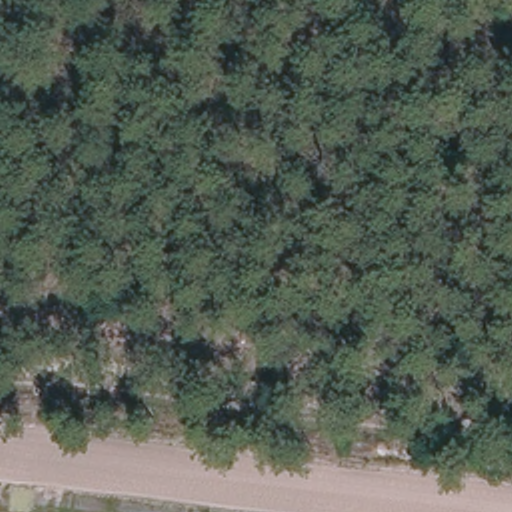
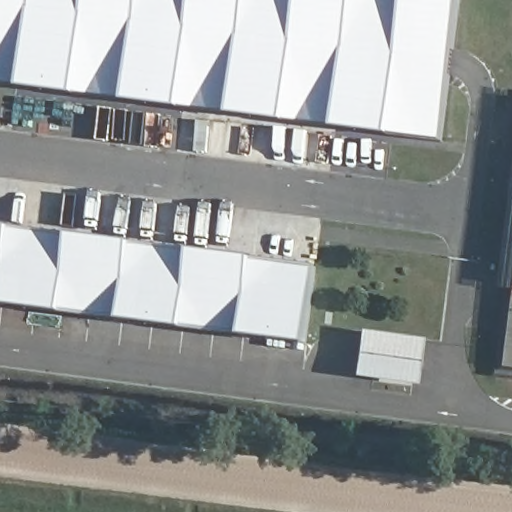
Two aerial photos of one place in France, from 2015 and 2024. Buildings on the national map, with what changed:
new [(0,0),(461,0),(442,139),(0,83),(0,0)]
new [(0,304),(0,226),(317,266),(306,344),(0,304)]
new [(502,368),(512,286),(512,370),(502,368)]
new [(368,332),(429,340),(424,386),(362,377),(368,332)]

